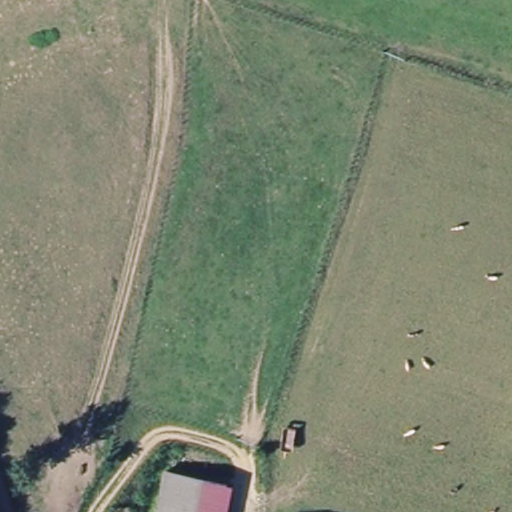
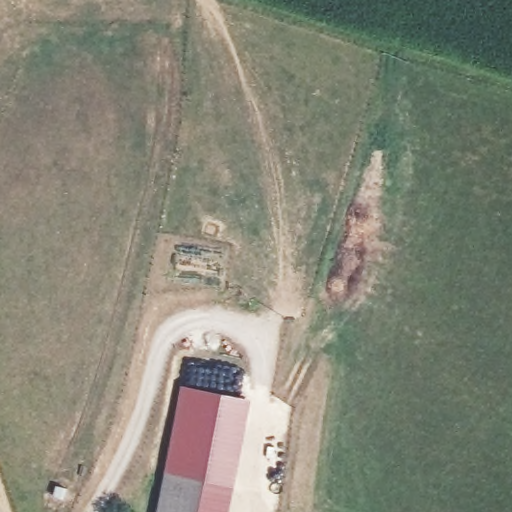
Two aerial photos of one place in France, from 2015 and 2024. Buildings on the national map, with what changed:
new [(227,512),(157,512),(181,387),(250,400),(227,512)]

